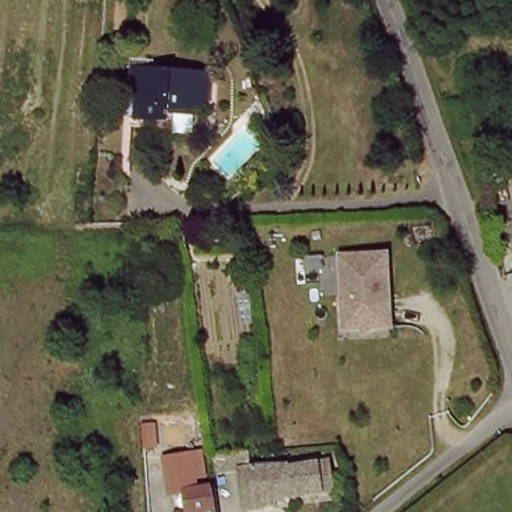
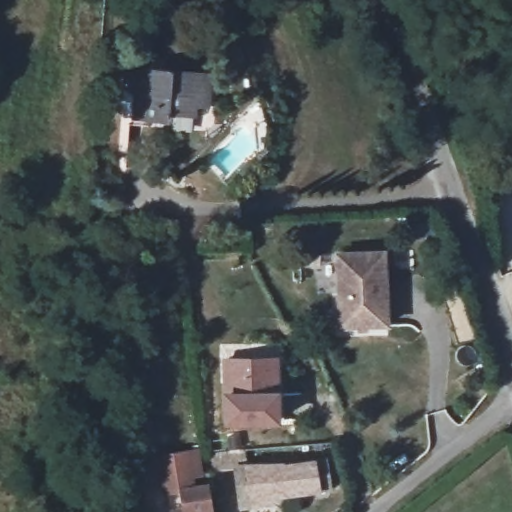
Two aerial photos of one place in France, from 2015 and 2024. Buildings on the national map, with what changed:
unchanged [(135,93),(129,92),(131,65),(216,69),(214,102),(198,104),(197,116),(170,114),(170,122),(143,120),(132,120),(135,93)]
unchanged [(107,114),(106,152),(81,152),(84,110),(107,114)]
unchanged [(382,255),(392,327),(354,332),(350,303),(341,300),(335,262),(382,255)]
new [(281,358),(282,426),(225,427),(224,393),(223,358),(281,358)]
new [(199,446),(204,476),(197,477),(200,488),(181,491),(184,512),(169,512),(159,457),(199,446)]
unchanged [(327,495),(275,502),(276,508),(248,512),(245,512),(239,473),(211,476),(210,476),(209,460),(248,456),(248,462),(249,471),(306,469),(321,467),(320,462),(328,461),(329,466),(333,494),(327,495)]
unchanged [(208,487),(210,512),(184,512),(181,491),(208,487)]

